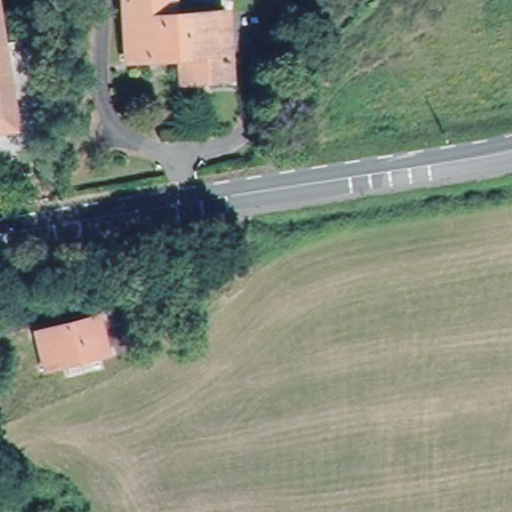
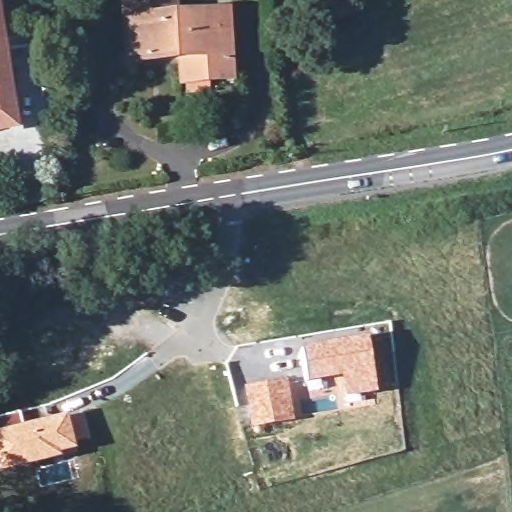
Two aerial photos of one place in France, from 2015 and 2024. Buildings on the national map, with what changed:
unchanged [(122,0),(165,0),(168,21),(220,20),(225,79),(180,81),(177,57),(124,61),(117,1),(122,0)]
unchanged [(19,127),(0,130),(0,21),(19,127)]
unchanged [(37,328),(96,314),(106,350),(48,365),(37,328)]
new [(367,337),(377,392),(344,397),(340,378),(306,382),(300,347),(367,337)]
new [(287,378),(295,420),(250,428),(241,386),(287,378)]
new [(27,423),(69,415),(69,417),(82,413),(89,438),(75,442),(77,450),(46,461),(0,473),(0,431),(27,423)]

